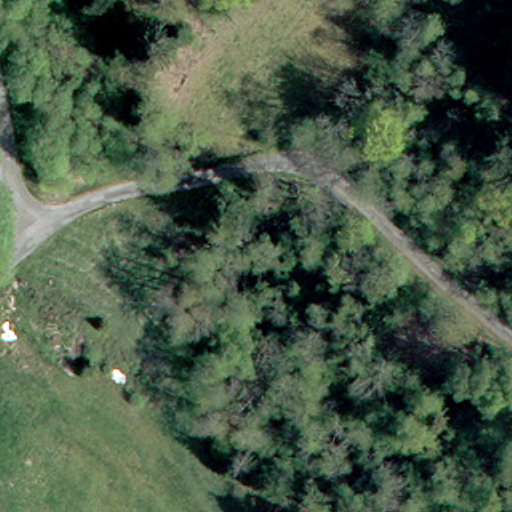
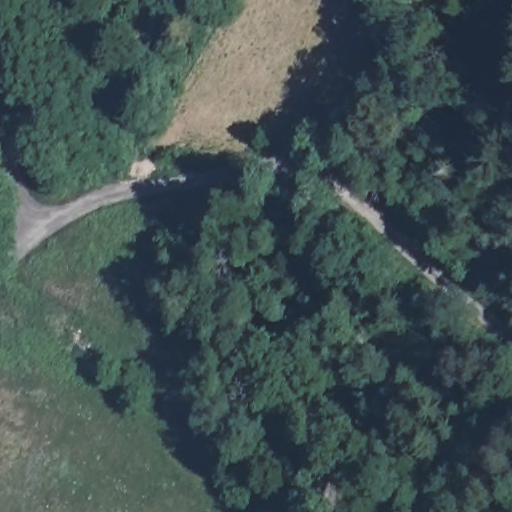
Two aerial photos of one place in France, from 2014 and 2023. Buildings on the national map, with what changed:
[]

